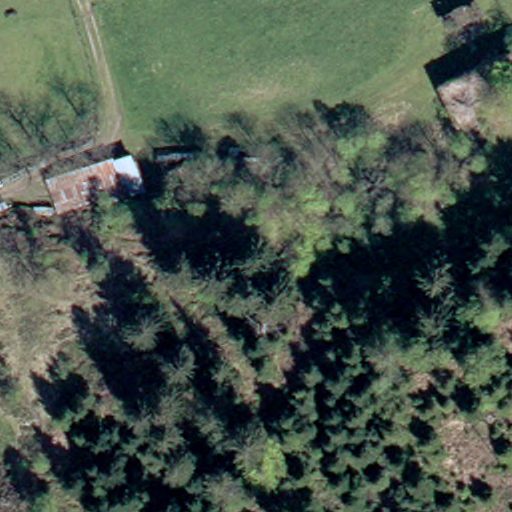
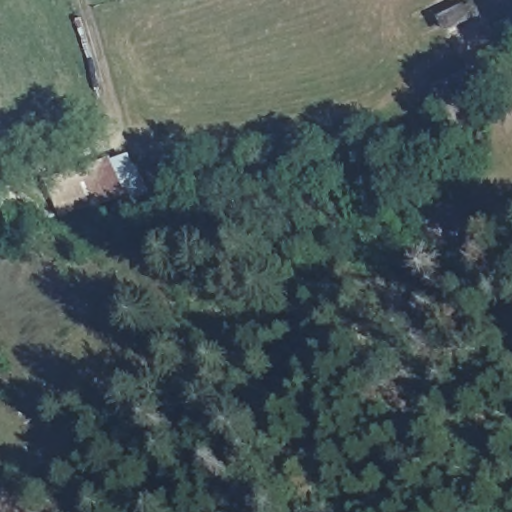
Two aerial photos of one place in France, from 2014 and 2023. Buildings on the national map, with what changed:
unchanged [(477,0),(480,6),(453,21),(444,4),(451,0),(477,0)]
unchanged [(114,160),(129,195),(63,215),(52,185),(114,160)]

